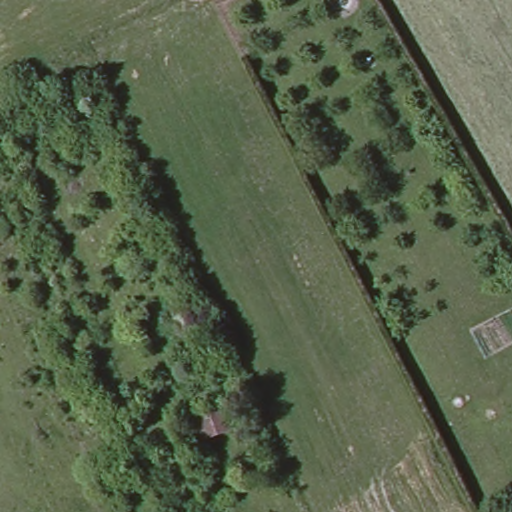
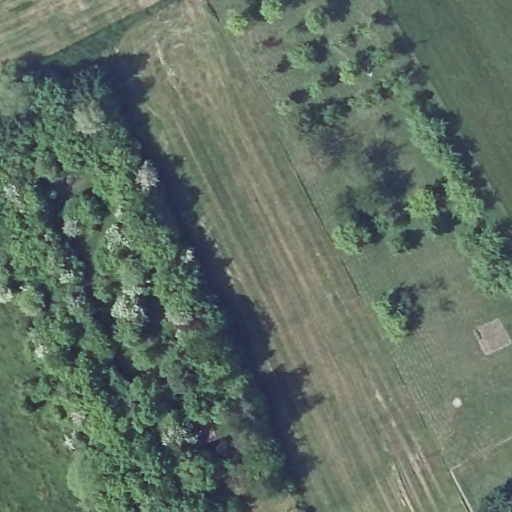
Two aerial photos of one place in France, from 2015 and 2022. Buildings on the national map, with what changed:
unchanged [(227,428),(202,438),(194,418),(220,408),(227,428)]

